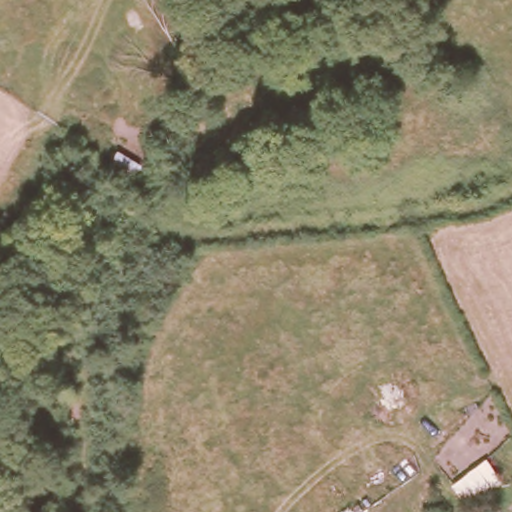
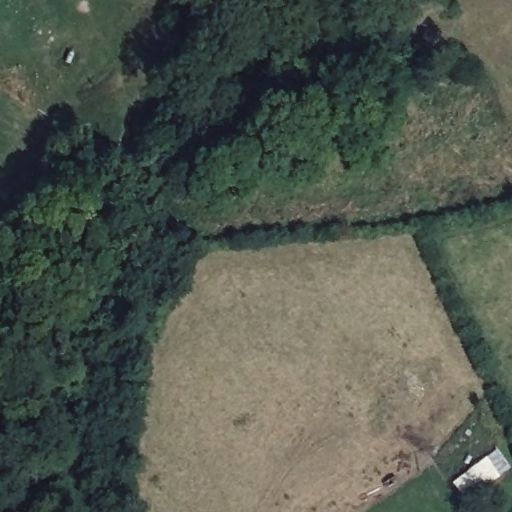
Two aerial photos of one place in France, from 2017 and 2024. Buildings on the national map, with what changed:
unchanged [(482,457),(496,475),(466,499),(451,482),(482,457)]

